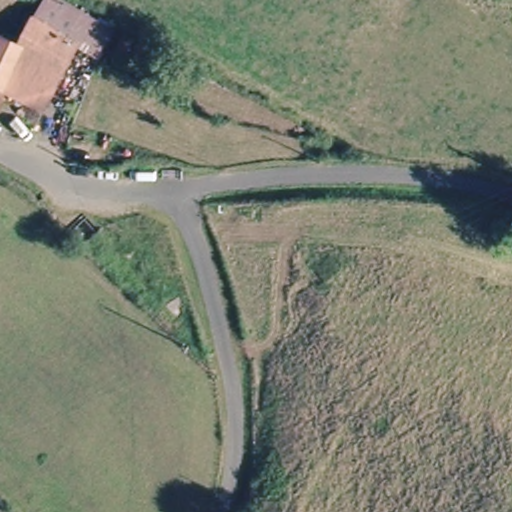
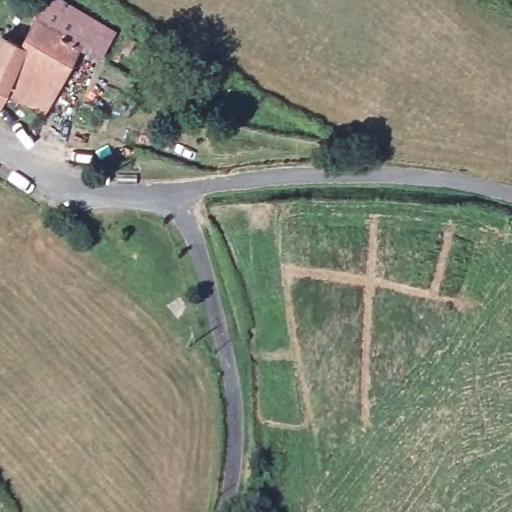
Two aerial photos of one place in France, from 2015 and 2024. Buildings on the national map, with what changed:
unchanged [(34,24),(49,5),(112,29),(105,52),(77,41),(34,24)]
unchanged [(22,44),(34,24),(77,41),(67,64),(72,66),(62,83),(61,84),(48,105),(6,85),(0,95),(0,41),(2,36),(22,44)]

